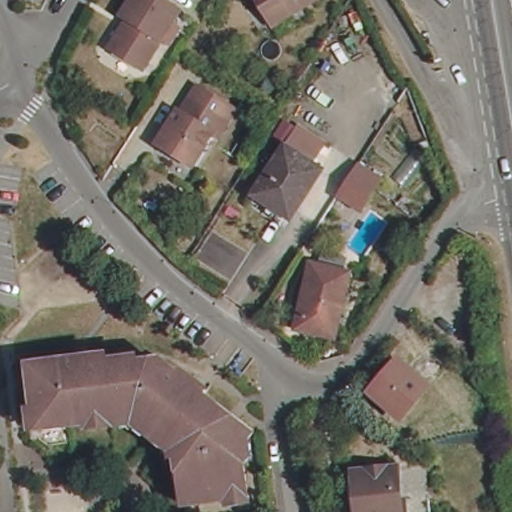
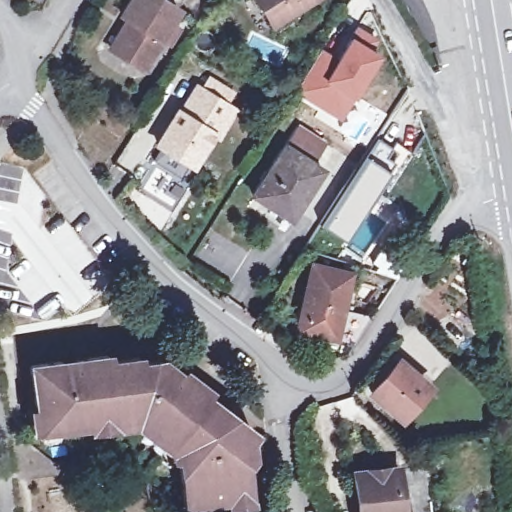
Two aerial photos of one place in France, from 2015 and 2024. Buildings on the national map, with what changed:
unchanged [(111,49),(128,20),(123,15),(132,0),(162,0),(178,10),(143,69),(111,49)]
unchanged [(262,0),(316,0),(278,24),(262,0)]
new [(321,46),(336,55),(356,24),(381,40),(375,50),(379,52),(341,120),(293,90),(321,46)]
unchanged [(161,148),(181,115),(186,117),(202,91),(204,92),(212,80),(239,97),(231,110),(233,111),(241,115),(224,142),(218,137),(198,170),(161,148)]
unchanged [(289,222),(254,200),(296,134),(321,150),(310,167),(320,174),(289,222)]
unchanged [(354,211),(333,198),(351,170),(372,185),(354,211)]
unchanged [(316,333),(296,328),(311,264),(348,272),(334,333),(333,337),(316,333)]
unchanged [(434,382),(402,419),(368,388),(401,353),(434,382)]
unchanged [(226,505),(183,510),(177,464),(161,451),(151,442),(129,425),(36,435),(29,436),(26,412),(33,411),(28,368),(58,365),(58,368),(76,366),(75,362),(88,361),(106,359),(107,365),(138,361),(139,366),(159,364),(176,377),(181,372),(196,385),(206,393),(203,398),(226,417),(236,425),(251,437),(241,450),(248,502),(248,510),(226,512),(226,505)]
unchanged [(355,472),(379,470),(392,470),(396,508),(397,512),(359,512),(355,472)]

